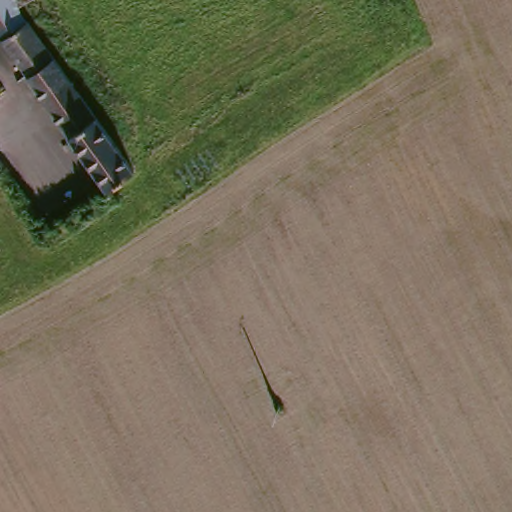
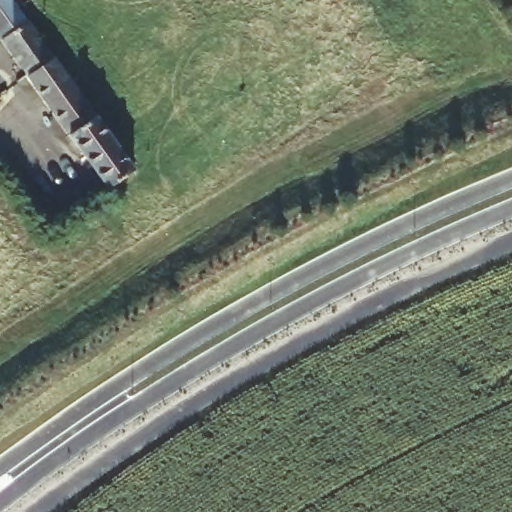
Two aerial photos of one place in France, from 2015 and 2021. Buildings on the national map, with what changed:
unchanged [(40,19),(25,30),(23,27),(20,29),(0,0),(26,0),(40,19)]
unchanged [(103,195),(0,51),(0,0),(20,29),(23,27),(25,30),(129,176),(103,195)]

